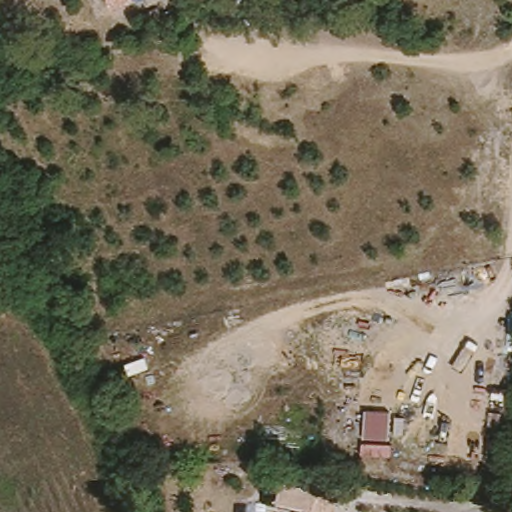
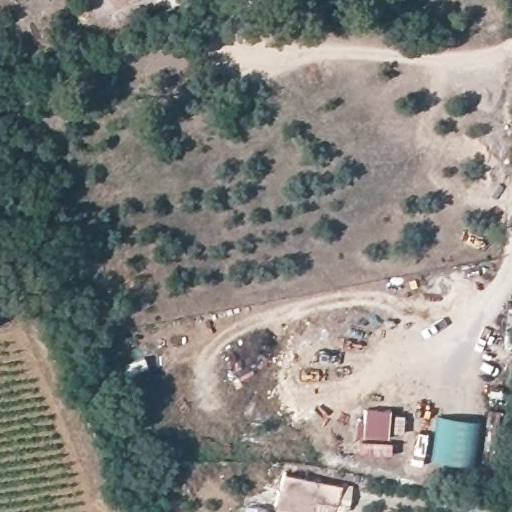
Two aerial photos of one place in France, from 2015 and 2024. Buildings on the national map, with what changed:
unchanged [(136,10),(120,20),(113,9),(127,0),(130,0),(136,10)]
unchanged [(390,415),(389,444),(363,442),(364,414),(390,415)]
new [(475,467),(434,460),(439,416),(480,423),(475,467)]
unchanged [(338,493),(332,512),(276,512),(285,477),(338,493)]

